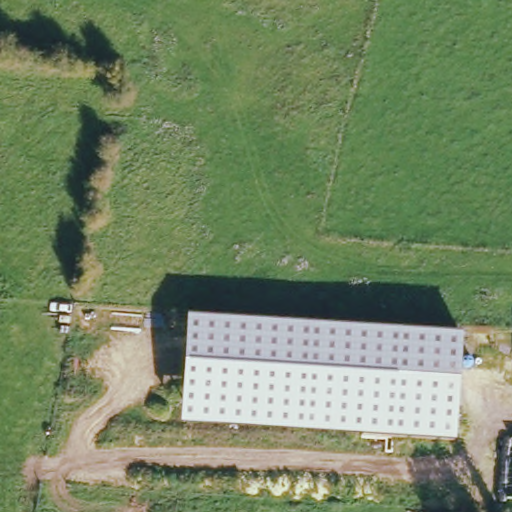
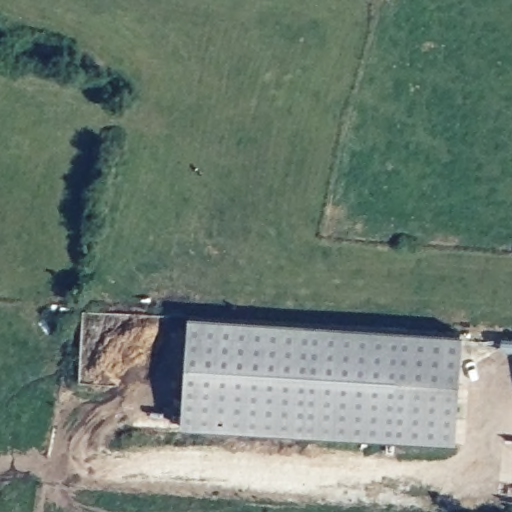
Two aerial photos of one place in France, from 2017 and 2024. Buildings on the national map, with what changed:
unchanged [(187,315),(462,333),(455,440),(180,422),(187,315)]

